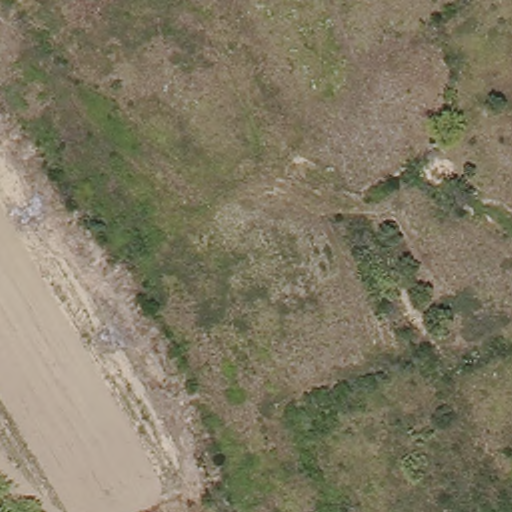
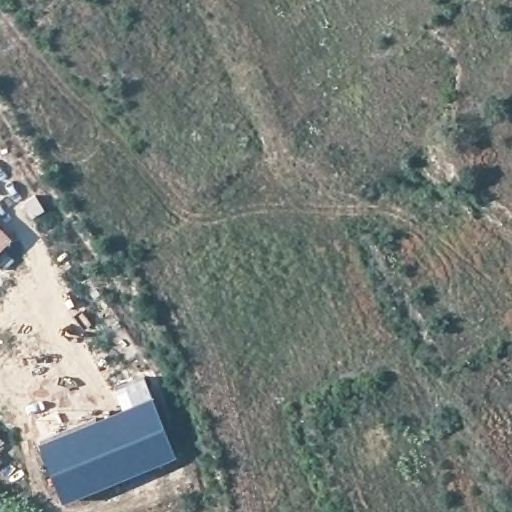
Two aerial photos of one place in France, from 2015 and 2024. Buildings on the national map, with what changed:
new [(0,252),(0,226),(13,239),(0,252)]
new [(120,407),(113,387),(143,373),(176,456),(133,473),(62,501),(37,440),(120,407)]

